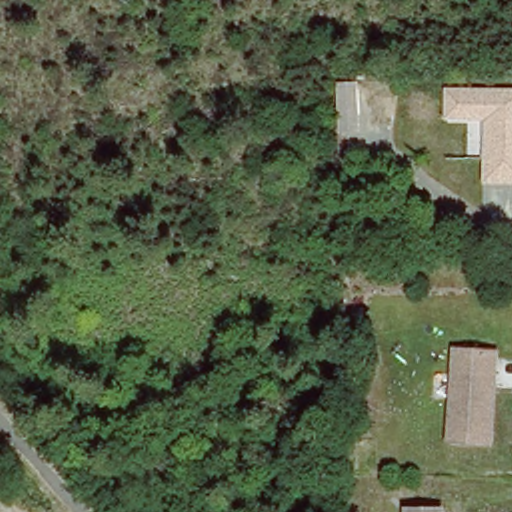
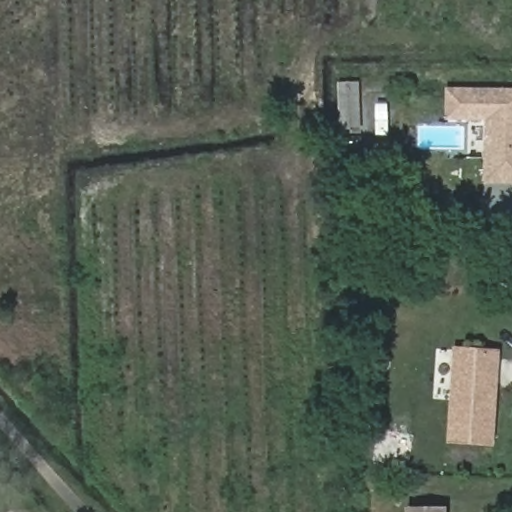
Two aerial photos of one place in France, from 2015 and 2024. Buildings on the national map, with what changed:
unchanged [(485,183),(487,163),(462,163),(463,125),(442,125),(442,92),(512,92),(512,183),(485,183)]
unchanged [(495,446),(447,442),(456,346),(500,351),(495,446)]
unchanged [(411,512),(412,508),(451,505),(451,512),(411,512)]

